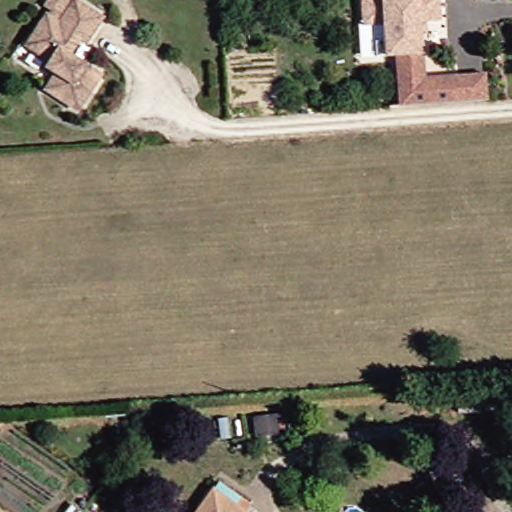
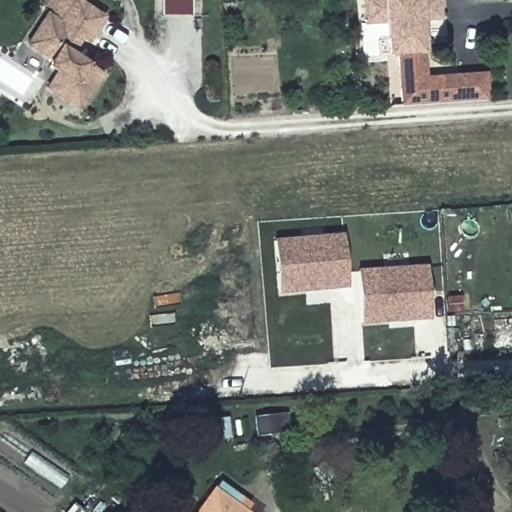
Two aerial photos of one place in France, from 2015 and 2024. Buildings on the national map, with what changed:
new [(194,11),(164,13),(163,0),(193,0),(194,11)]
unchanged [(465,99),(437,101),(405,103),(403,72),(401,51),(391,52),(366,53),(363,22),(368,21),(366,0),(444,0),(445,15),(426,17),(430,74),(438,73),(463,71),(490,69),(492,97),(465,99)]
unchanged [(54,61),(31,47),(51,17),(65,25),(80,2),(106,19),(91,43),(85,39),(74,56),(105,75),(82,111),(51,91),(62,74),(50,66),(54,61)]
new [(348,235),(352,285),(284,291),(280,240),(348,235)]
new [(431,268),(435,315),(365,318),(362,270),(431,268)]
unchanged [(203,512),(215,497),(235,512),(203,512)]

